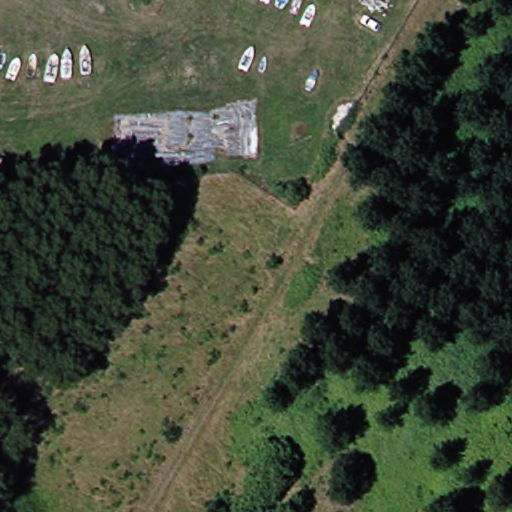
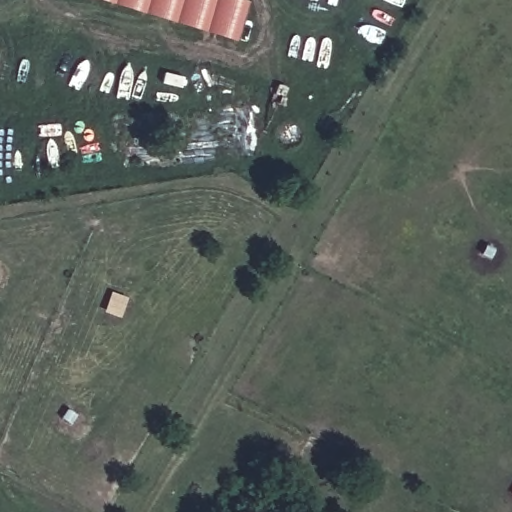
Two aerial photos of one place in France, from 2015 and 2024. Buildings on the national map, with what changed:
new [(100,0),(247,0),(237,41),(100,0)]

